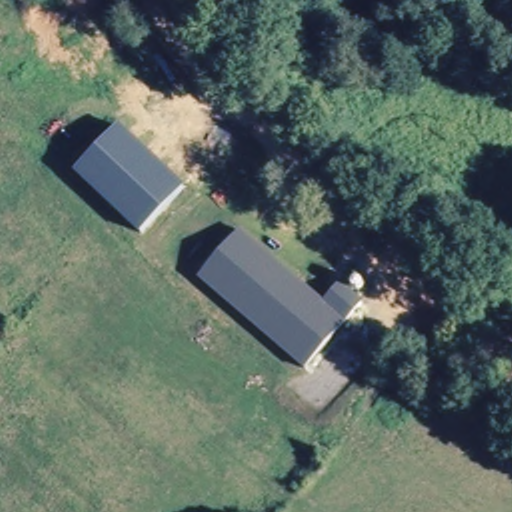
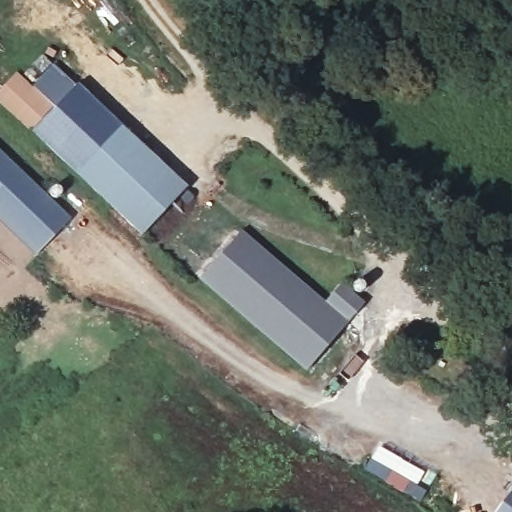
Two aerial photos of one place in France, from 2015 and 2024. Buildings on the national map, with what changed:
new [(73,173),(30,133),(53,108),(33,86),(52,66),(75,85),(120,124),(73,173)]
unchanged [(140,235),(73,173),(120,124),(185,187),(140,235)]
new [(38,243),(24,229),(0,207),(0,144),(55,196),(70,209),(38,243)]
unchanged [(339,283),(364,303),(346,323),(306,371),(198,279),(239,231),(324,302),(339,283)]
new [(511,484),(512,485),(512,512),(488,512),(511,484)]

